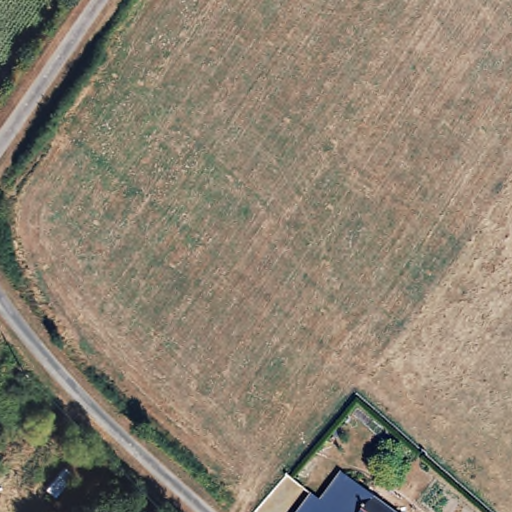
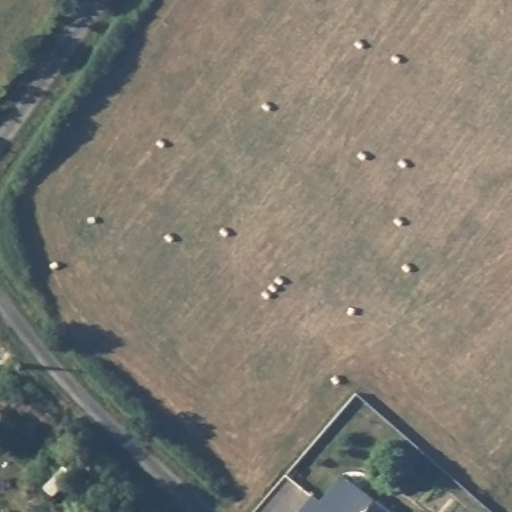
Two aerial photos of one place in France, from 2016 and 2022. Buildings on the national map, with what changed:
unchanged [(307,499),(317,506),(337,478),(345,484),(352,489),(385,512),(298,512),(307,499)]

